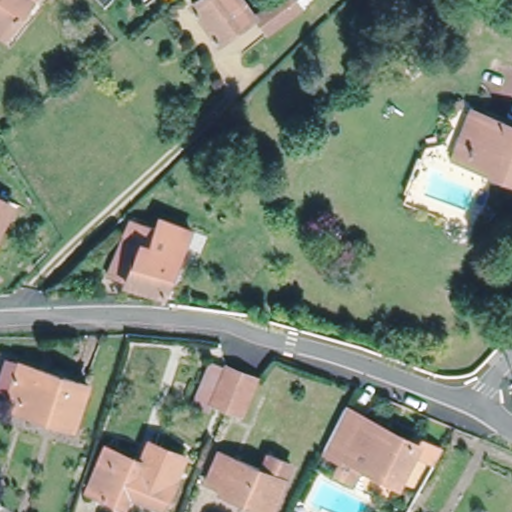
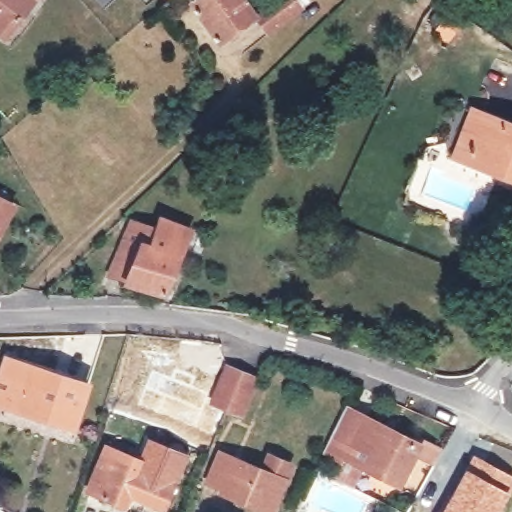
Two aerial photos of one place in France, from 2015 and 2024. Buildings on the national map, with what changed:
unchanged [(0,33),(0,0),(34,0),(5,37),(0,33)]
unchanged [(198,0),(247,0),(256,12),(221,36),(196,1),(198,0)]
unchanged [(273,0),(300,0),(302,4),(268,29),(256,12),(273,0)]
unchanged [(458,153),(475,111),(486,115),(512,125),(512,175),(470,158),(458,153)]
unchanged [(10,207),(0,227),(0,202),(10,207)]
unchanged [(148,235),(153,225),(183,236),(171,263),(156,299),(99,281),(115,243),(121,232),(124,226),(148,235)]
unchanged [(93,381),(80,423),(21,404),(26,391),(3,384),(12,355),(93,381)]
unchanged [(213,404),(209,412),(195,406),(212,363),(227,370),(228,366),(241,372),(257,378),(240,416),(224,409),(213,404)]
unchanged [(365,457),(354,480),(334,470),(344,450),(327,442),(348,400),(420,438),(401,475),(365,457)]
unchanged [(125,491),(121,501),(84,487),(101,443),(137,457),(144,437),(159,443),(138,496),(125,491)]
unchanged [(159,443),(180,451),(159,505),(138,496),(159,443)]
new [(472,452),(512,474),(512,488),(500,512),(440,512),(472,452)]
unchanged [(216,497),(218,493),(203,487),(215,458),(257,475),(263,461),(286,470),(269,512),(253,512),(216,497)]

